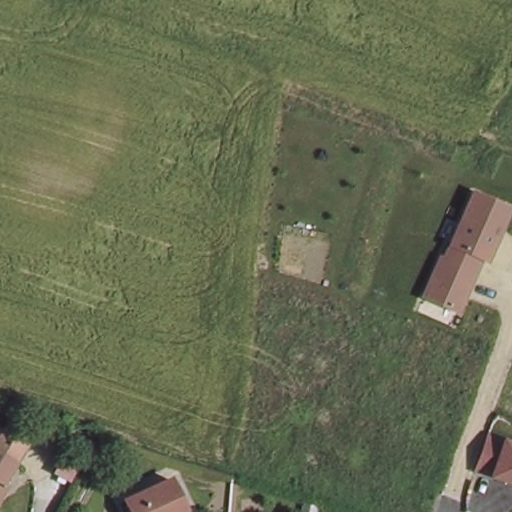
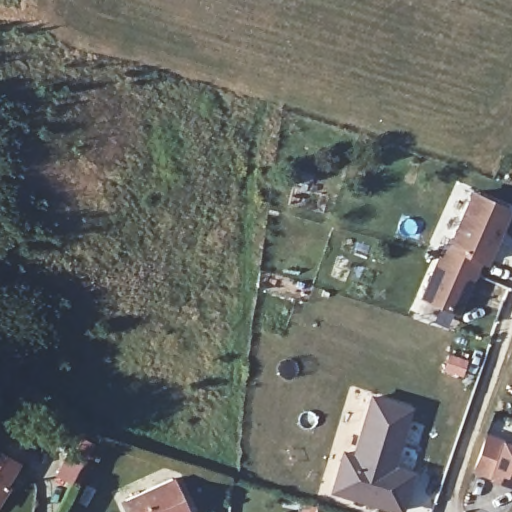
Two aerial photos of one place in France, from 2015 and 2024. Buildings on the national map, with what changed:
unchanged [(480,263),(460,314),(421,298),(439,252),(445,255),(473,190),(512,206),(512,211),(489,267),(480,263)]
new [(408,481),(400,506),(332,485),(341,459),(344,447),(355,450),(373,392),(411,403),(392,462),(412,468),(408,481)]
unchanged [(7,432),(12,436),(23,421),(41,435),(31,450),(35,452),(9,489),(12,492),(0,508),(0,442),(7,432)]
unchanged [(487,431),(512,439),(512,484),(471,473),(487,431)]
unchanged [(57,471),(68,452),(83,462),(72,480),(57,471)]
unchanged [(186,512),(130,512),(126,495),(138,491),(176,480),(186,512)]

